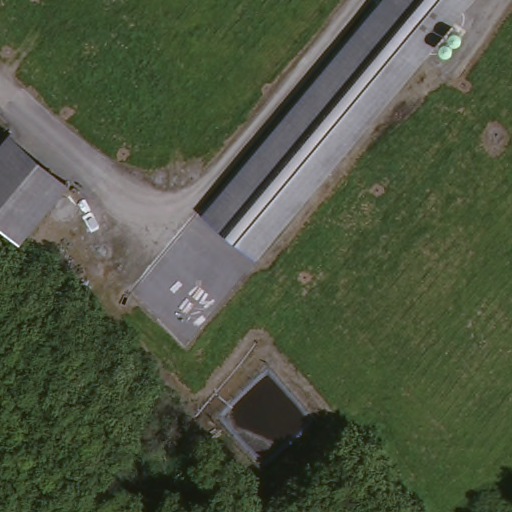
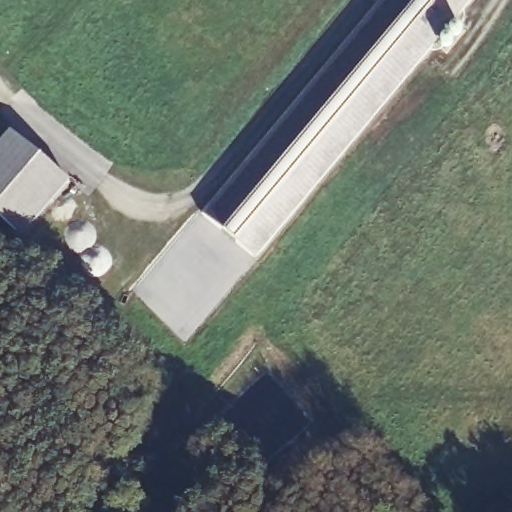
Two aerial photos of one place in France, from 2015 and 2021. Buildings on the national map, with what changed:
unchanged [(480,0),(260,260),(205,209),(382,0),(480,0)]
unchanged [(20,238),(0,220),(0,144),(11,131),(70,181),(20,238)]

